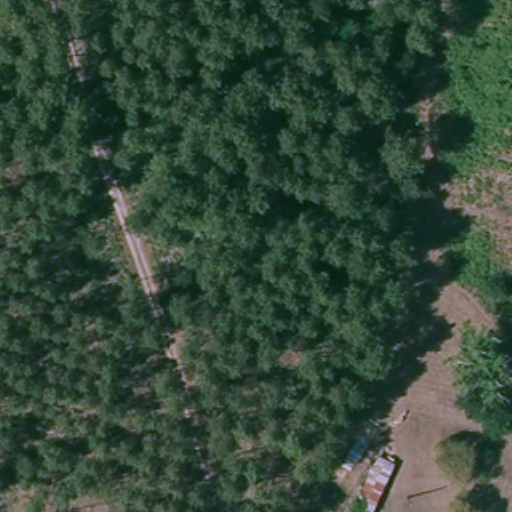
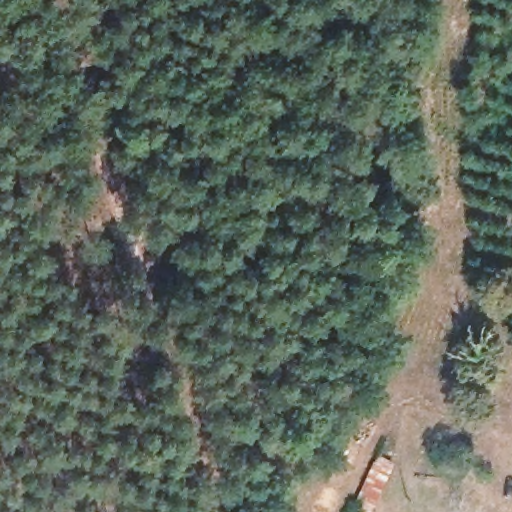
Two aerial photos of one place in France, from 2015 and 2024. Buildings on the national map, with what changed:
unchanged [(354,512),(377,458),(396,464),(376,512),(354,512)]

